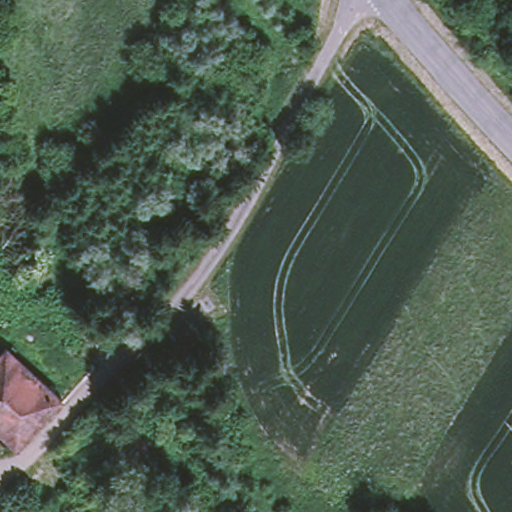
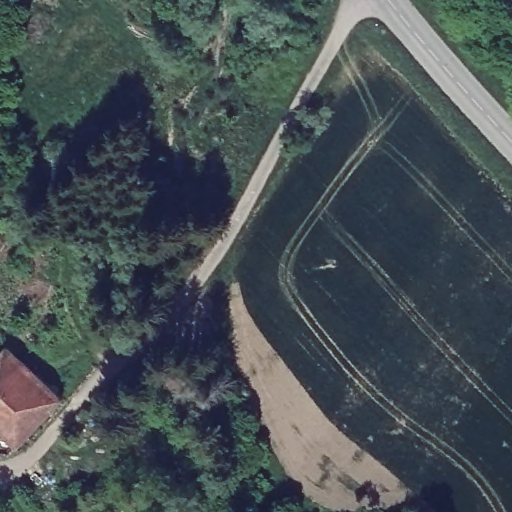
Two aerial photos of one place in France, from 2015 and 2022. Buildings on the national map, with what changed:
unchanged [(18,337),(70,386),(11,446),(0,436),(0,355),(18,337)]

